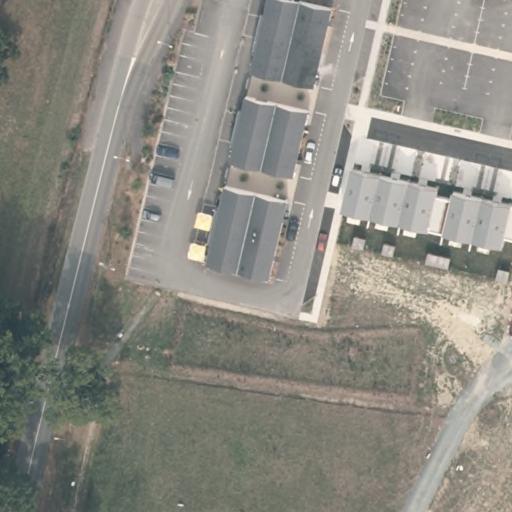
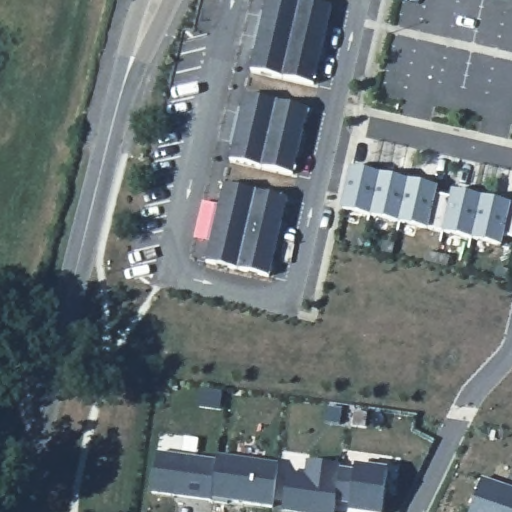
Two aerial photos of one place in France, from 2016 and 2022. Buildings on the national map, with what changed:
unchanged [(316,85),(252,70),(267,0),(288,0),(332,9),(316,85)]
unchanged [(309,110),(294,175),(230,161),(244,96),(309,110)]
unchanged [(502,244),(341,210),(349,168),(437,188),(436,195),(450,198),(452,190),(512,204),(512,238),(504,236),(502,244)]
unchanged [(286,199),(269,277),(205,264),(222,185),(286,199)]
new [(157,454),(218,461),(218,457),(279,464),(273,508),(213,499),(212,503),(151,494),(157,454)]
unchanged [(288,474),(307,476),(309,462),(339,466),(334,512),(296,512),(284,510),(288,474)]
new [(356,473),(356,468),(388,471),(384,512),(350,512),(351,504),(335,503),(339,470),(356,473)]
new [(482,479),(512,489),(512,512),(471,512),(482,479)]

